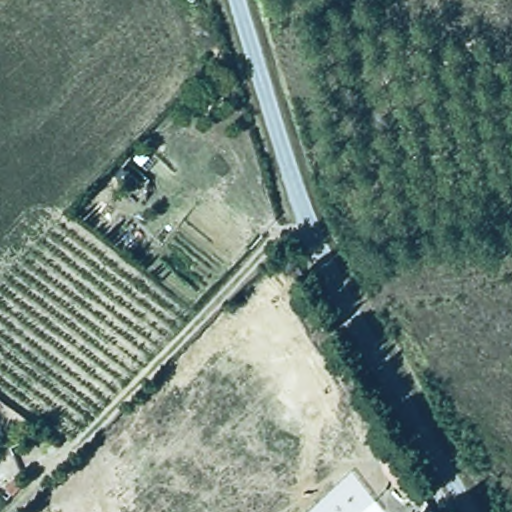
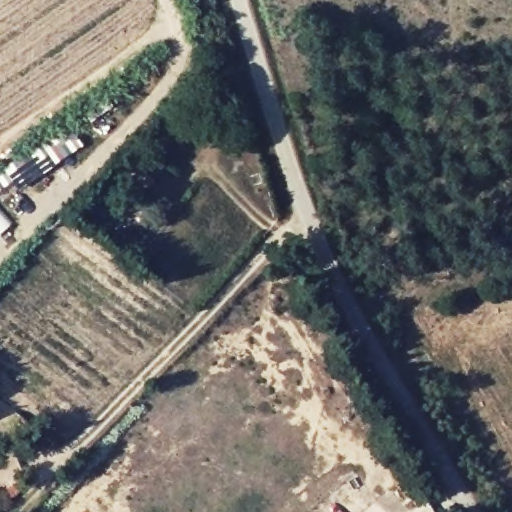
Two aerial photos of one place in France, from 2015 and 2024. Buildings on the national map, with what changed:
unchanged [(20,416),(6,429),(0,425),(0,403),(20,416)]

